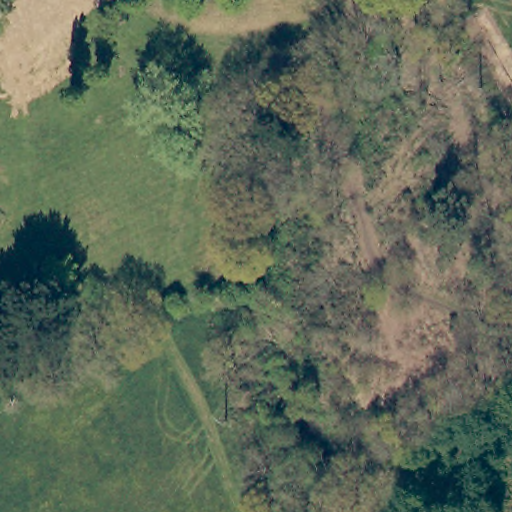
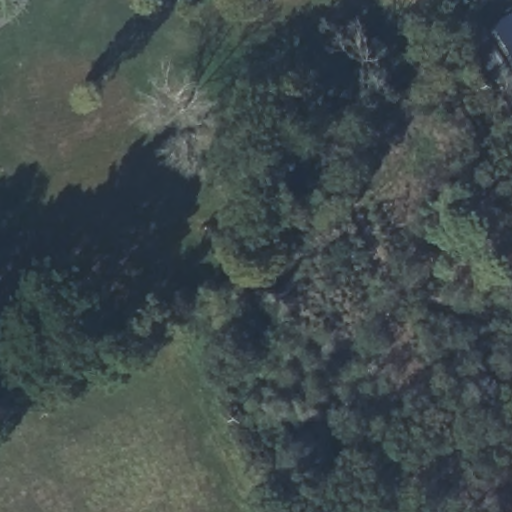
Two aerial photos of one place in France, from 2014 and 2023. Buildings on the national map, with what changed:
new [(512,15),(512,61),(491,28),(512,15)]

